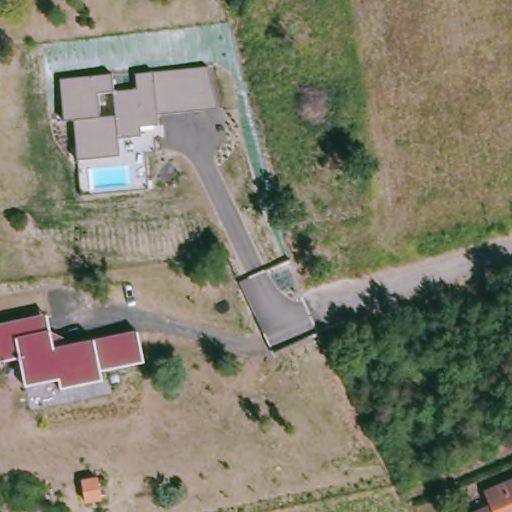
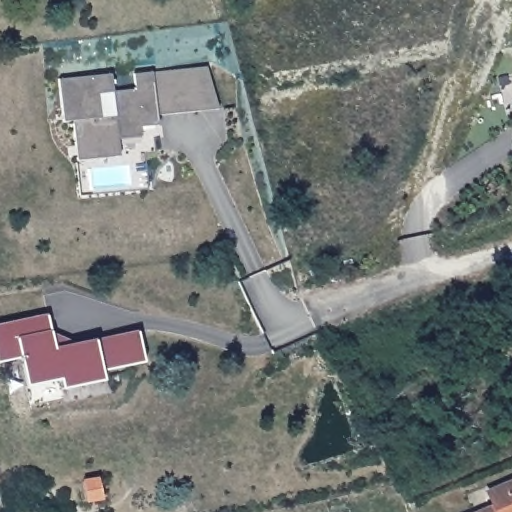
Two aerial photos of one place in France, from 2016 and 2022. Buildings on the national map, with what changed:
unchanged [(75,121),(65,121),(60,80),(111,74),(113,91),(137,90),(136,76),(153,74),(207,67),(218,108),(158,114),(159,124),(142,127),(143,136),(118,138),(120,156),(79,160),(75,121)]
unchanged [(100,368),(102,380),(61,389),(58,380),(27,386),(19,354),(0,360),(0,321),(47,312),(50,327),(79,340),(95,337),(137,328),(144,361),(100,368)]
unchanged [(78,506),(77,478),(102,476),(101,505),(78,506)]
unchanged [(493,508),(488,494),(512,484),(512,512),(485,512),(493,508)]

